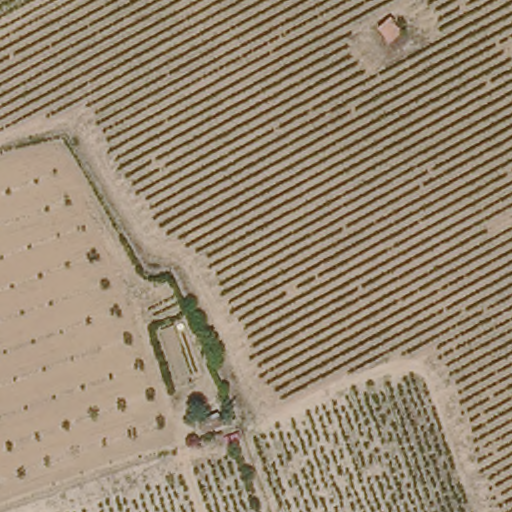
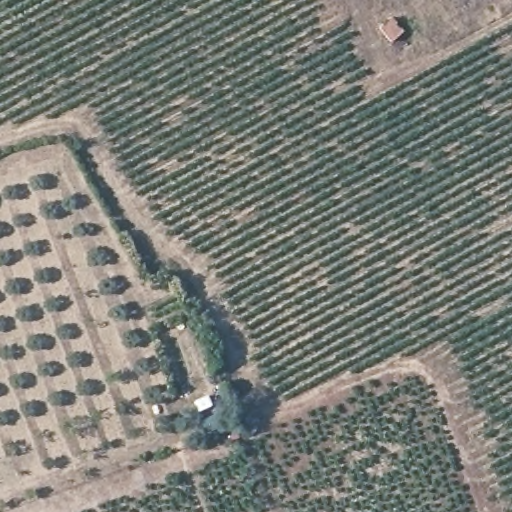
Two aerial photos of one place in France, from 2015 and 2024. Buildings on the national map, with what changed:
unchanged [(383,13),(394,26),(384,34),(373,21),(383,13)]
unchanged [(222,409),(228,427),(200,435),(197,415),(222,409)]

